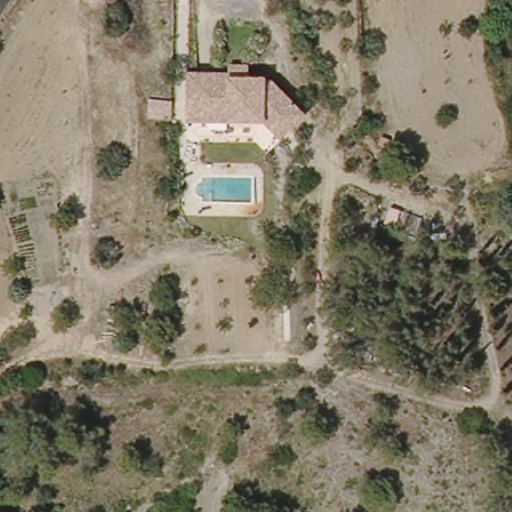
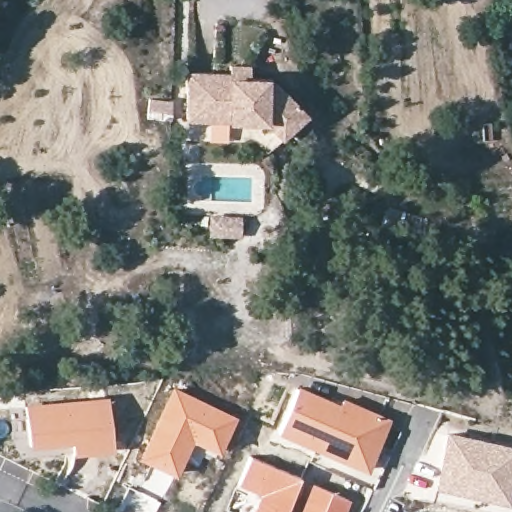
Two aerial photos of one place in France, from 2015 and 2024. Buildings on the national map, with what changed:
unchanged [(190,125),(186,81),(227,76),(226,69),(241,68),(242,80),(262,78),(262,86),(270,85),(286,99),(305,114),(287,136),(286,135),(266,118),(190,125)]
unchanged [(146,123),(145,104),(167,103),(168,122),(146,123)]
new [(172,387),(236,416),(216,453),(192,442),(174,476),(154,466),(138,459),(172,387)]
new [(299,388),(340,405),(343,399),(390,419),(367,472),(278,434),(299,388)]
new [(74,456),(72,444),(31,449),(26,406),(108,397),(113,453),(74,456)]
new [(508,501),(507,505),(473,500),(432,491),(444,430),(512,446),(512,479),(508,501)]
new [(256,497),(235,489),(249,456),(302,477),(286,512),(250,512),(256,497)]
new [(311,483),(351,499),(345,512),(298,512),(311,483)]

